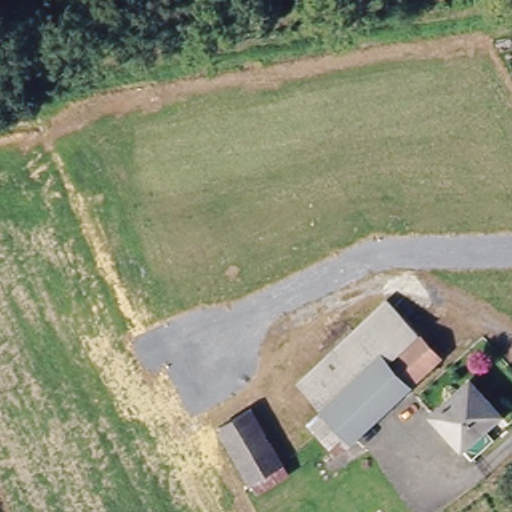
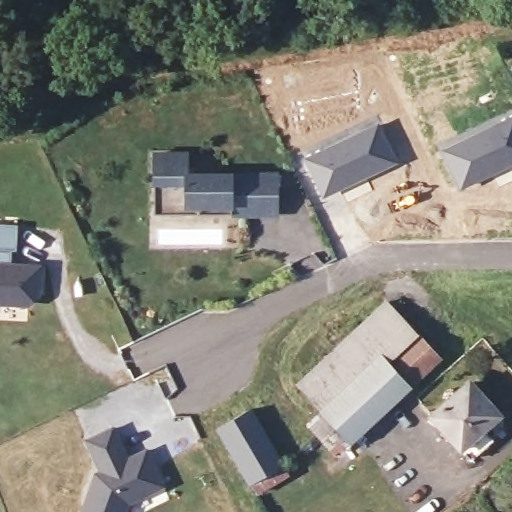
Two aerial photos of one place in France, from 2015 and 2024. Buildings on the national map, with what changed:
new [(512,166),(458,191),(437,145),(512,114),(512,166)]
new [(378,118),(400,163),(320,200),(300,155),(378,118)]
new [(156,220),(155,160),(188,159),(188,180),(278,180),(278,219),(242,219),(188,219),(156,220)]
unchanged [(17,227),(15,253),(11,252),(10,267),(17,268),(40,269),(39,287),(37,287),(37,297),(27,306),(0,305),(0,226),(17,227)]
unchanged [(306,426),(323,412),(298,384),(385,302),(441,362),(351,444),(335,456),(306,426)]
unchanged [(485,427),(491,437),(470,456),(427,413),(468,375),(501,412),(485,427)]
unchanged [(252,501),(246,489),(215,433),(249,415),(280,467),(288,479),(252,501)]
new [(88,441),(113,429),(124,451),(128,460),(147,451),(157,470),(164,486),(148,494),(129,503),(126,512),(84,512),(97,475),(103,472),(88,441)]

